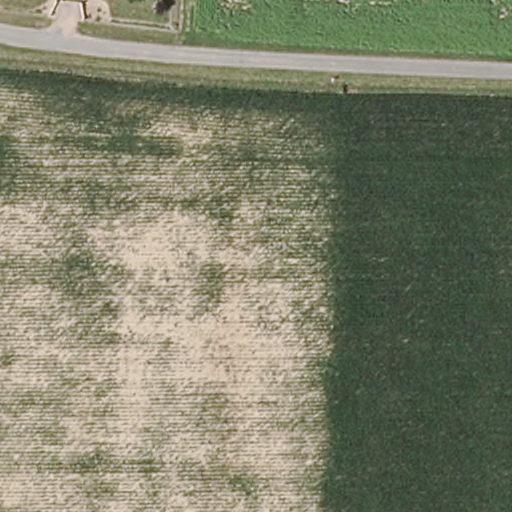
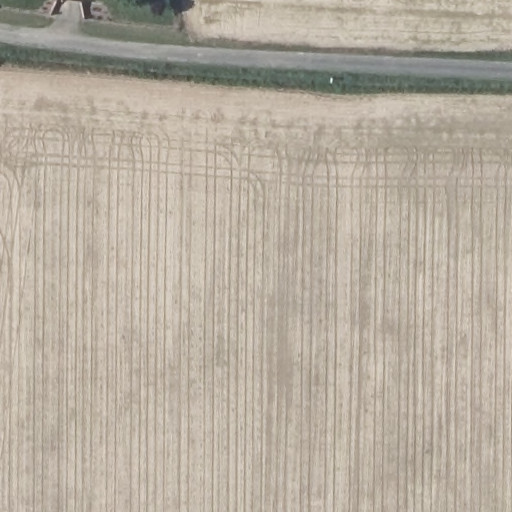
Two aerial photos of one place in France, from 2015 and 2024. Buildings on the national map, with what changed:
[]

